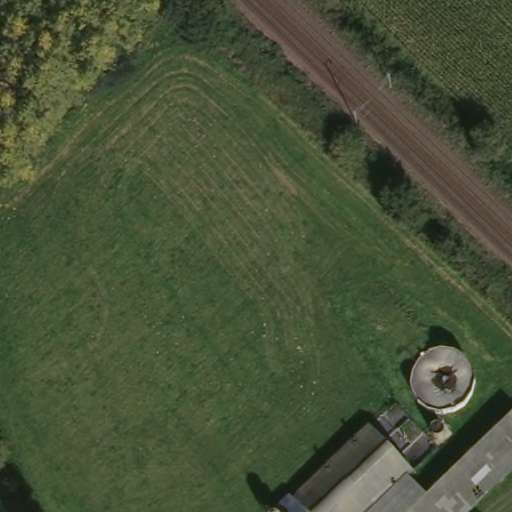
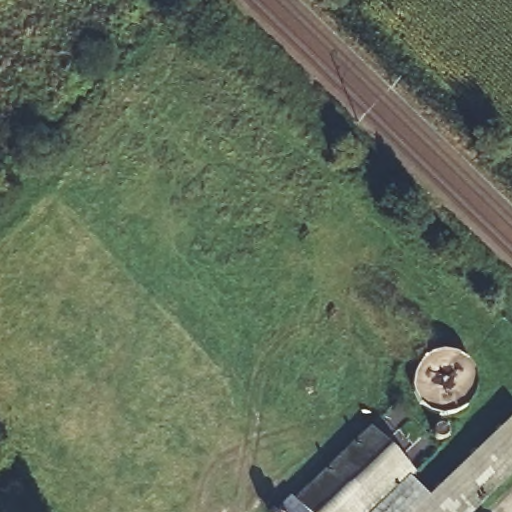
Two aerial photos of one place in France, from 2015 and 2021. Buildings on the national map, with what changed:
unchanged [(418,512),(512,425),(512,478),(475,512),(418,512)]
unchanged [(377,512),(288,512),(373,435),(415,477),(377,512)]

